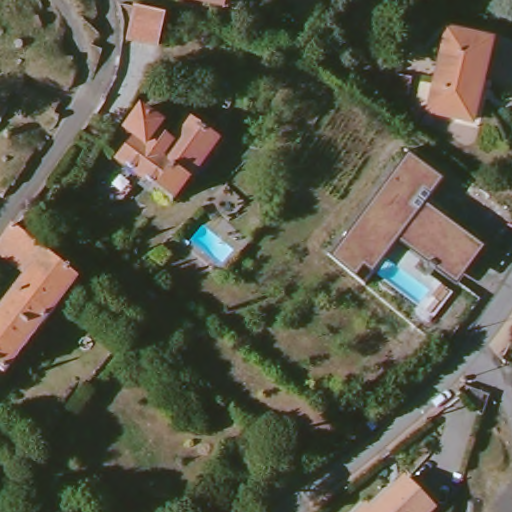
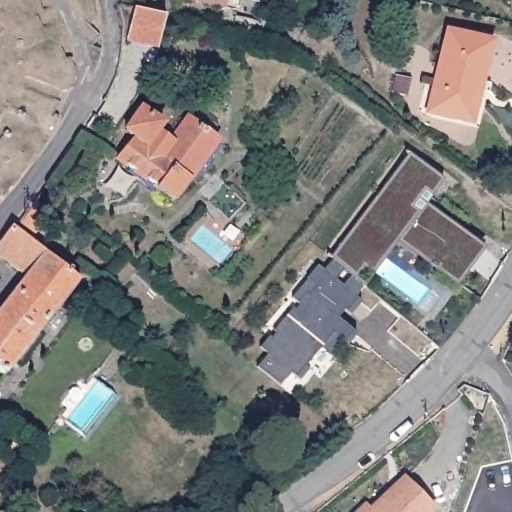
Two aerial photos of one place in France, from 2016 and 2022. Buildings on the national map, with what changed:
unchanged [(212,0),(233,0),(232,5),(212,0)]
unchanged [(128,35),(135,5),(137,5),(169,12),(161,43),(128,35)]
unchanged [(430,109),(440,77),(435,76),(449,30),(490,43),(465,120),(430,109)]
unchanged [(122,167),(140,143),(130,137),(147,115),(165,128),(159,135),(172,144),(191,120),(222,144),(172,206),(122,167)]
unchanged [(455,283),(398,238),(364,284),(332,256),(408,154),(442,181),(425,205),(483,248),(455,283)]
unchanged [(0,253),(0,250),(17,225),(20,227),(34,207),(47,217),(33,237),(85,280),(3,369),(0,367),(0,308),(27,277),(0,253)]
new [(350,314),(345,310),(338,318),(357,332),(347,343),(332,332),(305,365),(309,368),(298,380),(291,373),(280,384),(257,366),(267,353),(261,347),(270,336),(272,338),(277,332),(275,330),(293,308),(297,310),(300,304),(293,298),(317,265),(325,271),(333,257),(343,266),(335,278),(345,286),(352,274),(364,284),(357,296),(362,302),(350,314)]
unchanged [(365,506),(370,511),(405,480),(435,511),(434,512),(359,512),(365,506)]

